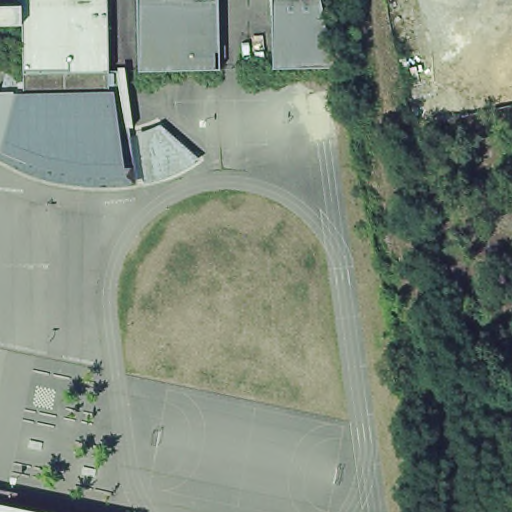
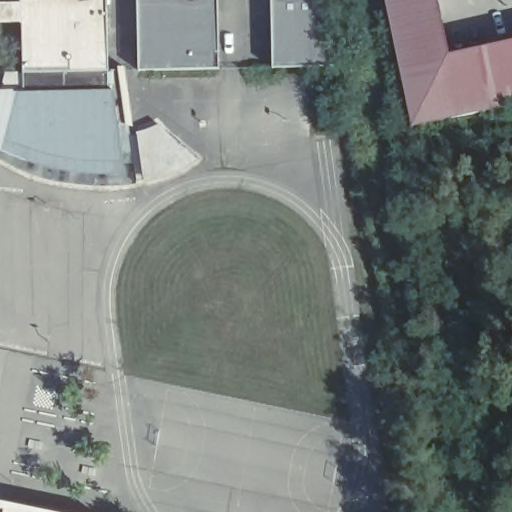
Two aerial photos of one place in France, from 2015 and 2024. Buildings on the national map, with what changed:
unchanged [(102,93),(123,186),(80,190),(47,188),(12,178),(0,173),(0,131),(9,96),(12,61),(8,28),(0,28),(0,0),(99,0),(100,73),(102,93)]
unchanged [(208,70),(135,76),(133,0),(207,0),(208,70)]
unchanged [(327,70),(264,77),(262,0),(312,0),(327,70)]
new [(448,55),(512,40),(512,106),(412,128),(385,0),(436,0),(448,55)]
new [(205,159),(195,169),(176,180),(159,185),(146,185),(136,131),(158,121),(205,159)]
unchanged [(481,442),(504,437),(508,452),(484,457),(481,442)]
unchanged [(33,512),(0,512),(0,505),(33,512)]

